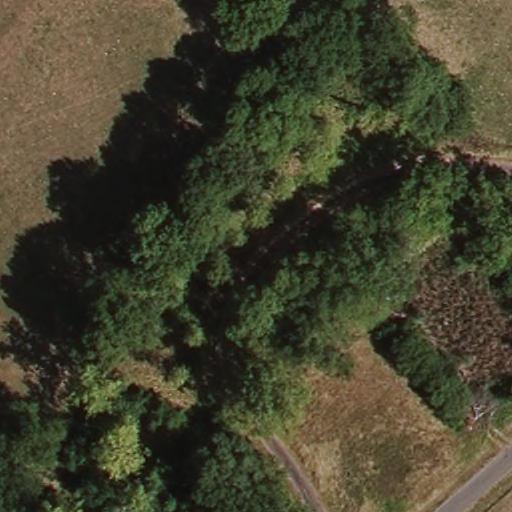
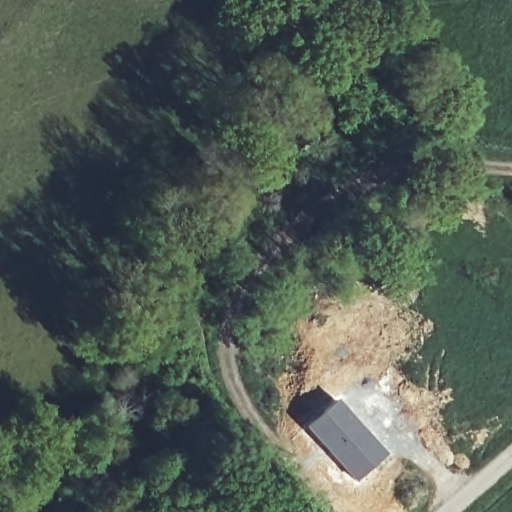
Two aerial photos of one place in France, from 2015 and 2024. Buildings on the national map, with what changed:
new [(339,396),(390,452),(355,484),(304,427),(339,396)]

